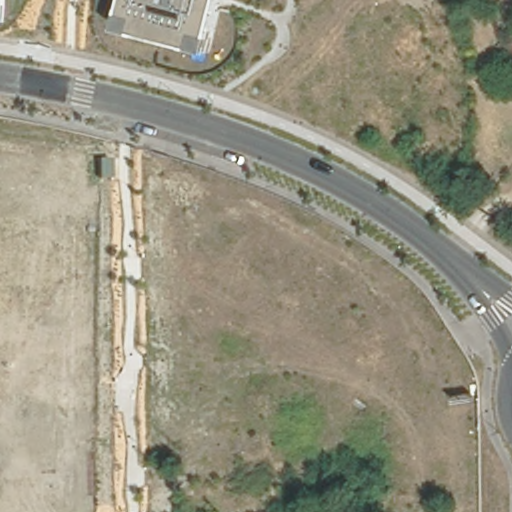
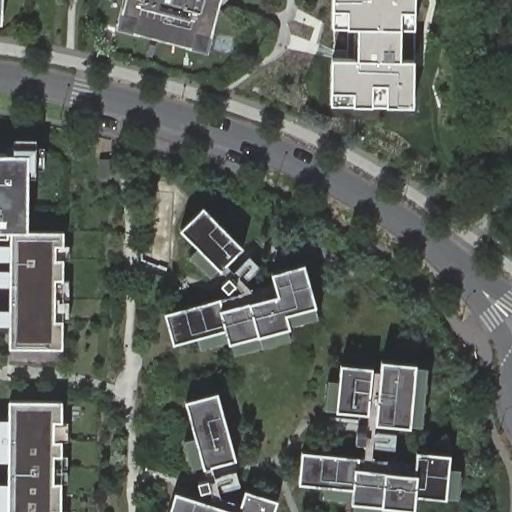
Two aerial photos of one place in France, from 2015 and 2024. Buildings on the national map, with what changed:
unchanged [(2,24),(0,24),(0,0),(4,0),(2,24)]
new [(206,50),(119,27),(126,0),(219,0),(206,50)]
new [(422,28),(409,26),(408,59),(421,60),(421,102),(336,100),(338,60),(364,56),(365,26),(340,25),(341,0),(422,0),(422,28)]
new [(29,230),(10,230),(0,230),(0,153),(30,154),(29,230)]
new [(212,277),(189,255),(198,246),(180,228),(203,205),(244,246),(212,277)]
new [(10,230),(29,230),(64,230),(63,347),(9,347),(10,230)]
new [(315,303),(319,315),(288,325),(291,336),(260,344),(233,353),(229,341),(200,349),(196,337),(174,343),(164,311),(222,297),(274,282),(271,270),(304,261),(315,303)]
new [(327,378),(339,380),(340,362),(379,366),(380,358),(427,363),(421,426),(374,421),(375,415),(323,409),(327,378)]
new [(236,458),(193,470),(184,438),(195,435),(185,400),(218,390),(236,458)]
new [(8,460),(0,460),(0,418),(8,418),(8,400),(62,400),(61,512),(8,512),(8,483),(8,460)]
new [(415,493),(413,506),(413,512),(351,512),(352,500),(321,497),(323,485),(298,482),(301,450),(359,455),(415,461),(416,449),(450,453),(449,466),(461,467),(457,498),(415,493)]
new [(8,512),(0,512),(0,483),(8,483),(8,512)]
new [(167,512),(175,488),(238,509),(245,488),(278,499),(273,512),(167,512)]

